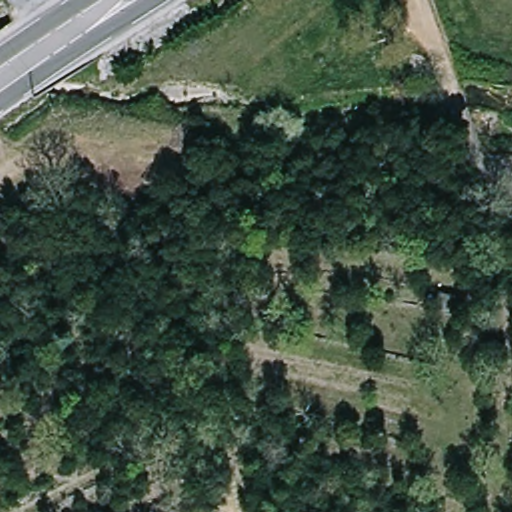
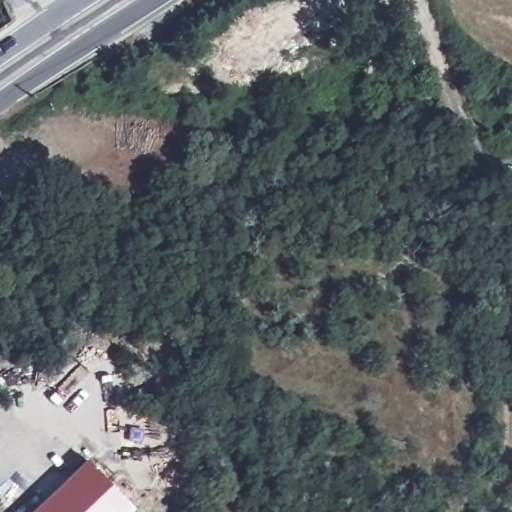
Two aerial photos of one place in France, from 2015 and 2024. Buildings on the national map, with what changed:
new [(88,460),(137,511),(135,512),(34,512),(88,460)]

